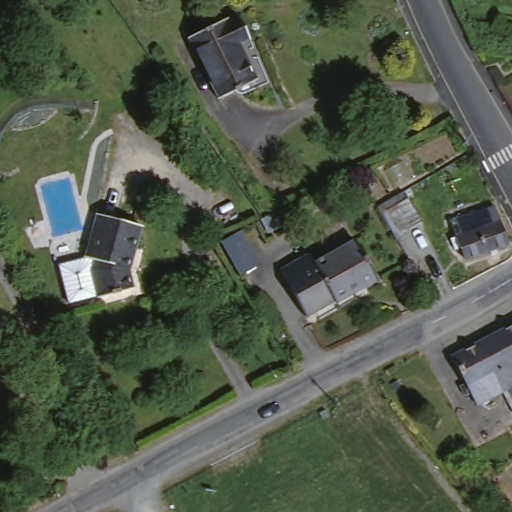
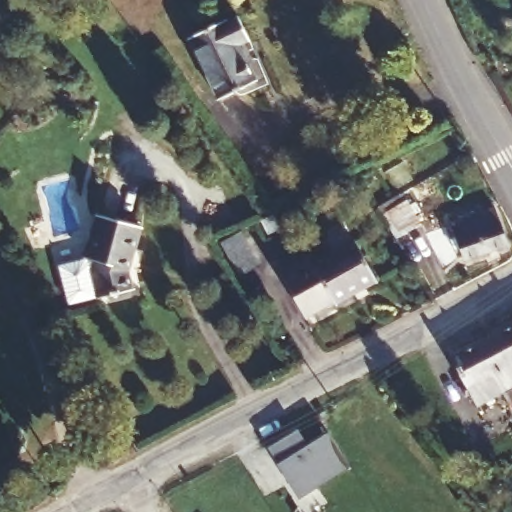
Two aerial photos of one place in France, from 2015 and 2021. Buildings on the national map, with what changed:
unchanged [(247,41),(235,47),(253,84),(215,102),(185,43),(224,24),(224,25),(236,20),(247,41)]
unchanged [(434,188),(413,200),(423,220),(398,234),(381,205),(429,177),(434,188)]
unchanged [(501,252),(458,268),(454,257),(447,260),(443,247),(449,244),(444,231),(488,216),(501,252)]
unchanged [(134,230),(124,277),(127,292),(92,300),(85,276),(89,267),(80,265),(91,219),(134,230)]
unchanged [(243,230),(262,261),(242,272),(223,241),(243,230)]
unchanged [(279,280),(289,273),(307,265),(312,272),(352,250),(374,289),(358,298),(354,293),(332,307),(333,309),(317,317),(303,325),(279,280)]
unchanged [(508,393),(482,406),(457,360),(512,328),(512,400),(508,393)]
new [(328,432),(349,465),(299,498),(277,464),(328,432)]

